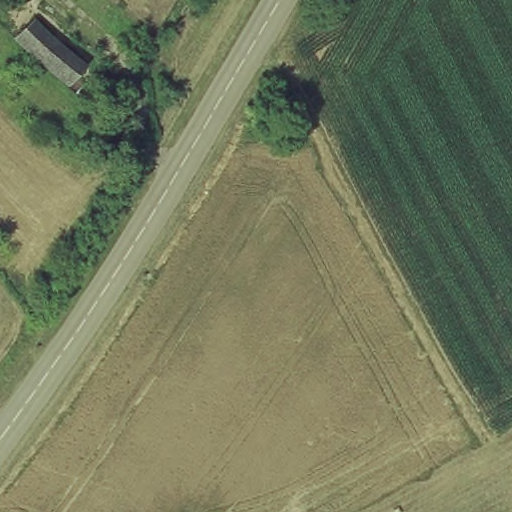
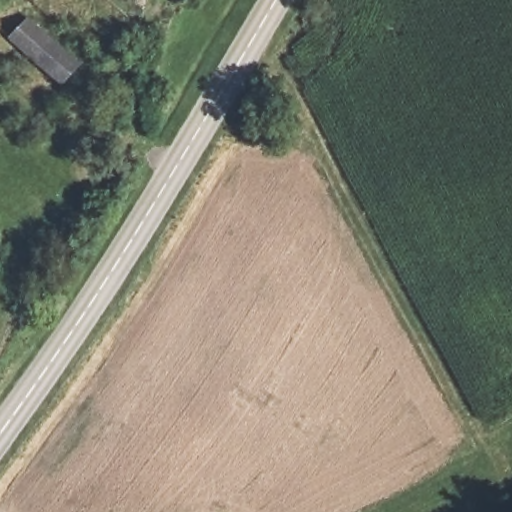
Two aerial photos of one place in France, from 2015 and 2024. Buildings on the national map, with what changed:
unchanged [(8,36),(28,14),(83,61),(62,86),(8,36)]

